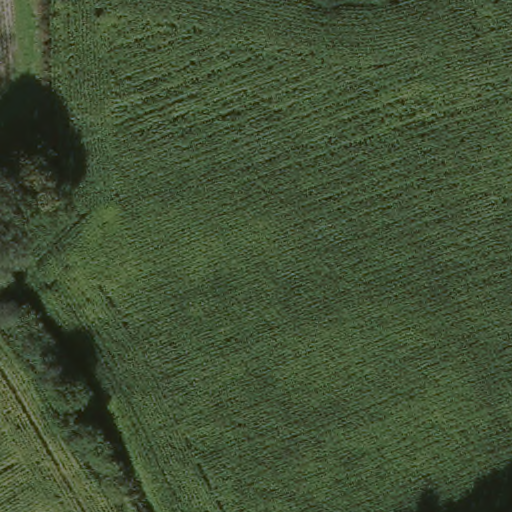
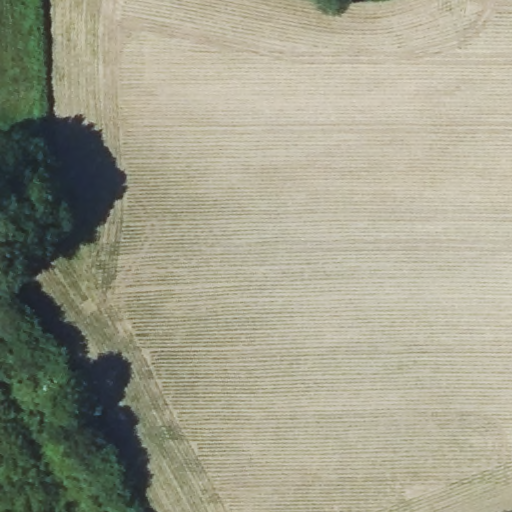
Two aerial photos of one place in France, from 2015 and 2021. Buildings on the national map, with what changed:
[]

